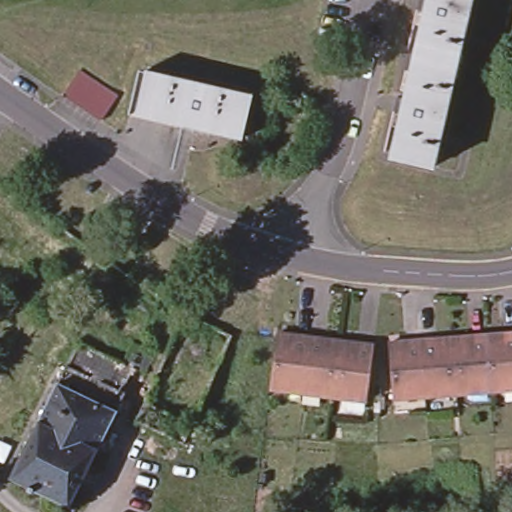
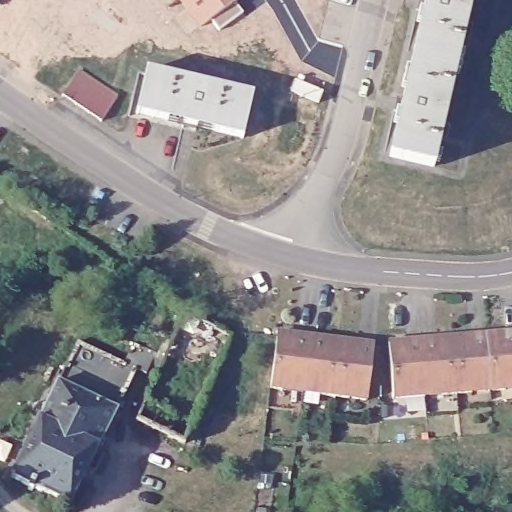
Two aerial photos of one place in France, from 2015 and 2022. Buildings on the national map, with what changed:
new [(242,13),(218,30),(211,19),(201,28),(181,0),(235,0),(233,1),(242,13)]
unchanged [(424,18),(418,16),(421,3),(427,4),(428,0),(472,0),(432,170),(389,161),(400,118),(394,116),(398,102),(404,103),(424,18)]
unchanged [(80,69),(119,94),(103,119),(63,94),(80,69)]
unchanged [(146,73),(253,99),(242,141),(136,117),(146,73)]
unchanged [(265,389),(272,333),(346,343),(368,346),(363,400),(265,389)]
unchanged [(512,333),(512,388),(389,398),(384,344),(384,343),(512,333)]
unchanged [(76,347),(136,374),(116,416),(57,388),(76,347)]
unchanged [(57,388),(116,416),(98,453),(39,425),(57,388)]
unchanged [(26,494),(28,491),(12,483),(39,425),(98,453),(70,511),(33,494),(32,496),(26,494)]

